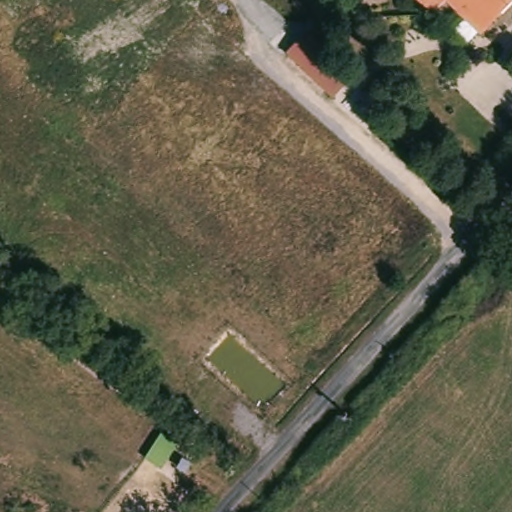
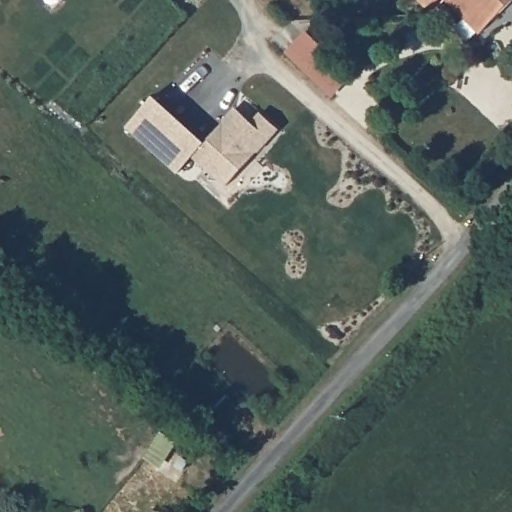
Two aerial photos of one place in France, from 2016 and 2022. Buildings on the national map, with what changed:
unchanged [(423,0),(450,0),(437,13),(423,0)]
unchanged [(453,0),(512,0),(512,7),(486,33),(453,0)]
unchanged [(331,95),(310,74),(287,53),(306,36),(327,56),(348,76),(331,95)]
new [(204,142),(209,136),(216,129),(236,108),(252,123),(261,114),(277,129),(225,186),(192,156),(177,173),(126,125),(154,95),(204,142)]

